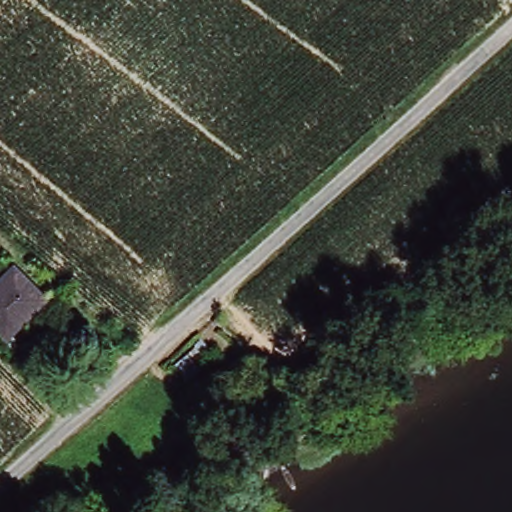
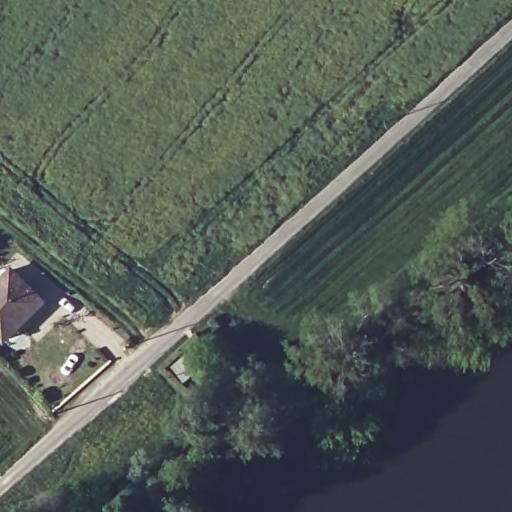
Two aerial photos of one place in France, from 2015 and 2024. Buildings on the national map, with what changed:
unchanged [(0,337),(0,281),(12,270),(42,301),(24,321),(6,342),(0,337)]

